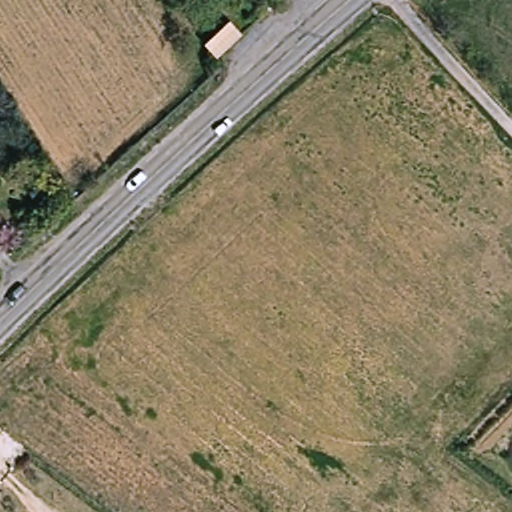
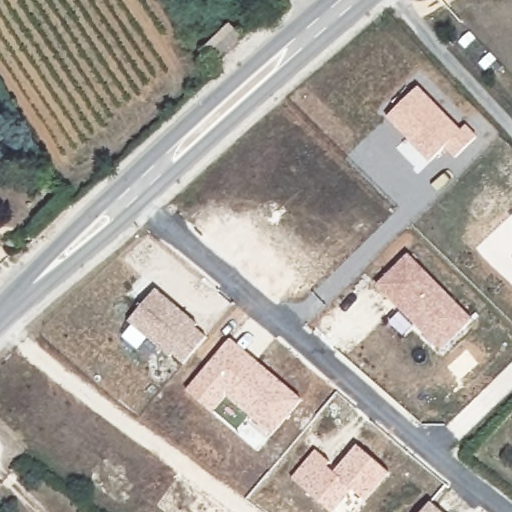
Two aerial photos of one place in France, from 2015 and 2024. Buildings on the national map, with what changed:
new [(386,118),(419,87),(461,129),(467,125),(477,136),(454,159),(444,148),(430,162),(386,118)]
new [(408,254),(472,319),(441,350),(376,285),(408,254)]
new [(183,361),(171,352),(169,354),(128,320),(156,288),(196,323),(194,325),(206,335),(183,361)]
new [(301,400),(271,433),(226,395),(213,412),(186,390),(231,338),(301,400)]
new [(327,466),(334,472),(358,445),(389,472),(367,501),(354,489),(334,512),(293,478),(316,450),(330,462),(327,466)]
new [(442,512),(421,512),(429,501),(442,512)]

